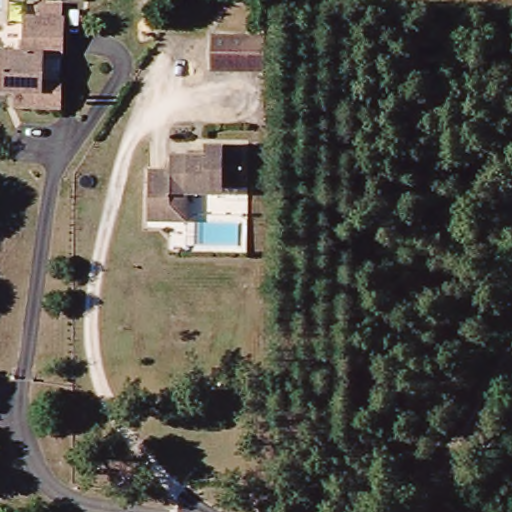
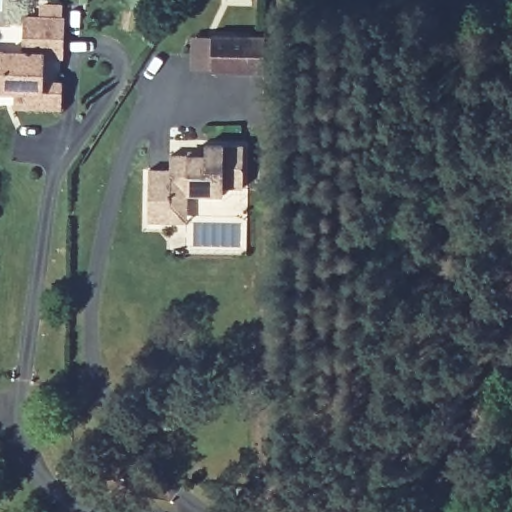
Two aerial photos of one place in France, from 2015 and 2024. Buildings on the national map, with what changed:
unchanged [(23,52),(25,15),(59,16),(58,53),(40,53),(41,81),(56,81),(56,103),(16,101),(17,88),(0,87),(0,51),(23,52)]
unchanged [(206,70),(206,33),(260,34),(260,71),(206,70)]
unchanged [(245,195),(195,197),(192,227),(149,224),(151,170),(169,168),(170,156),(207,158),(207,146),(247,146),(245,195)]

